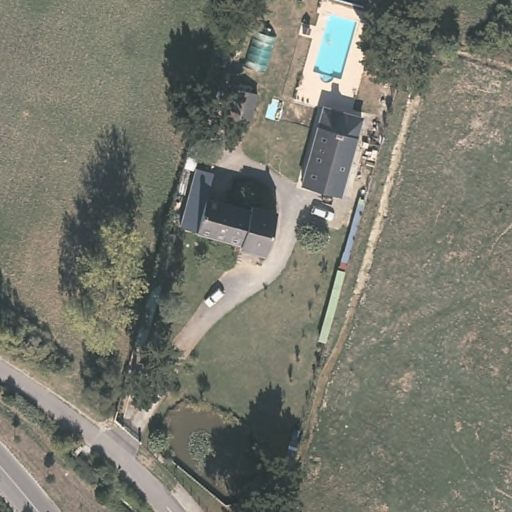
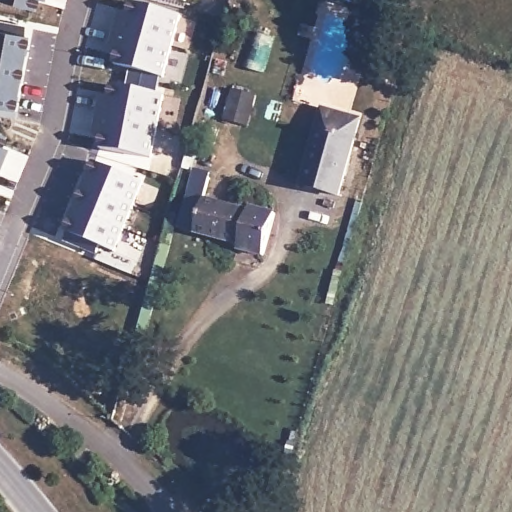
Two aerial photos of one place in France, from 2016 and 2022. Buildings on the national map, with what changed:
new [(31,10),(0,1),(0,0),(35,0),(31,10)]
new [(42,1),(35,0),(42,0),(42,1)]
new [(187,4),(174,0),(189,0),(187,4)]
new [(121,12),(130,12),(132,1),(183,15),(165,80),(115,65),(120,52),(111,51),(121,12)]
new [(20,34),(26,35),(22,47),(24,47),(15,98),(12,97),(10,110),(0,108),(0,20),(23,25),(20,34)]
new [(100,149),(104,136),(94,134),(102,95),(111,96),(113,86),(166,94),(153,159),(100,149)]
unchanged [(358,112),(352,138),(312,127),(318,102),(358,112)]
unchanged [(352,138),(335,196),(295,184),(312,127),(352,138)]
new [(0,138),(0,134),(2,135),(0,138)]
new [(0,161),(0,148),(5,150),(0,161)]
new [(116,255),(99,245),(95,253),(67,240),(70,232),(67,231),(96,162),(147,182),(116,255)]
unchanged [(255,211),(281,219),(270,261),(244,253),(245,249),(200,237),(204,222),(189,219),(200,179),(216,183),(210,204),(253,216),(255,211)]

